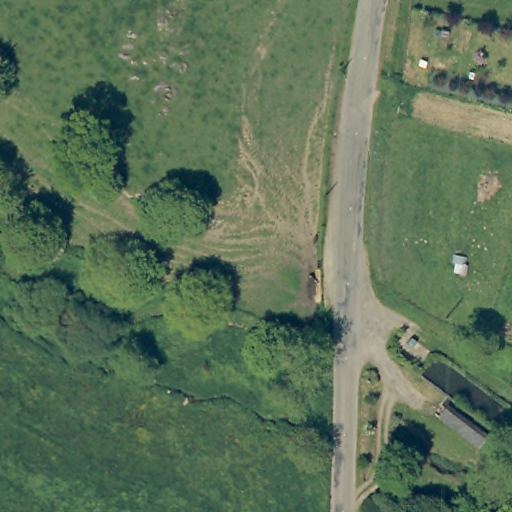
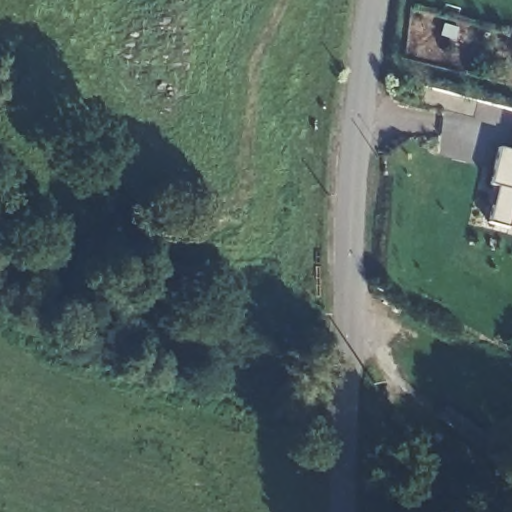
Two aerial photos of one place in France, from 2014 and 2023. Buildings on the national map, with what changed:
new [(488,222),(497,185),(490,184),(500,146),(512,150),(512,207),(506,227),(488,222)]
demolished [(394,348),(405,333),(433,353),(421,368),(394,348)]
unchanged [(481,448),(435,414),(441,405),(487,440),(481,448)]

